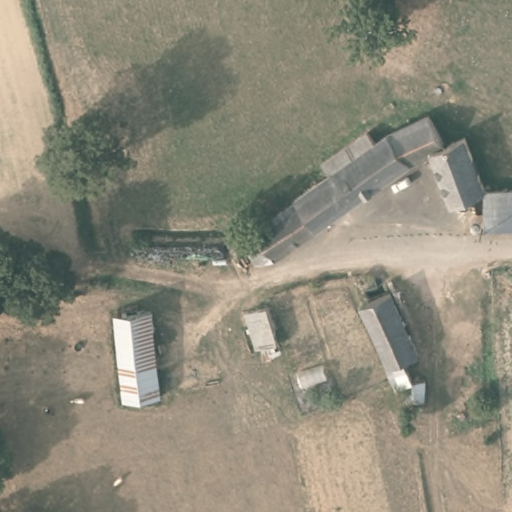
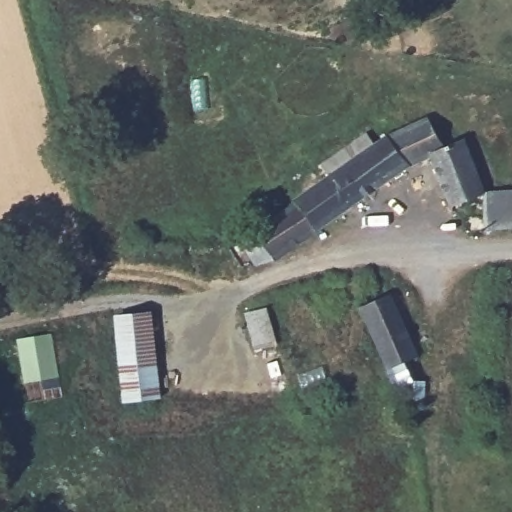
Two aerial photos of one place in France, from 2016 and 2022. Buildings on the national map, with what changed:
unchanged [(423,116),(442,144),(424,155),(401,164),(274,262),(257,267),(253,261),(235,235),(258,224),(293,201),(294,195),(413,120),(423,116)]
unchanged [(448,200),(424,155),(442,144),(458,135),(476,189),(448,200)]
unchanged [(476,189),(498,187),(512,186),(512,227),(501,227),(481,229),(476,189)]
unchanged [(388,297),(414,352),(398,360),(408,381),(424,379),(421,421),(412,421),(399,409),(402,384),(393,382),(360,308),(388,297)]
unchanged [(265,308),(279,340),(260,349),(246,320),(265,308)]
unchanged [(116,316),(149,310),(163,395),(129,401),(116,316)]
new [(50,333),(62,396),(27,403),(15,340),(50,333)]

